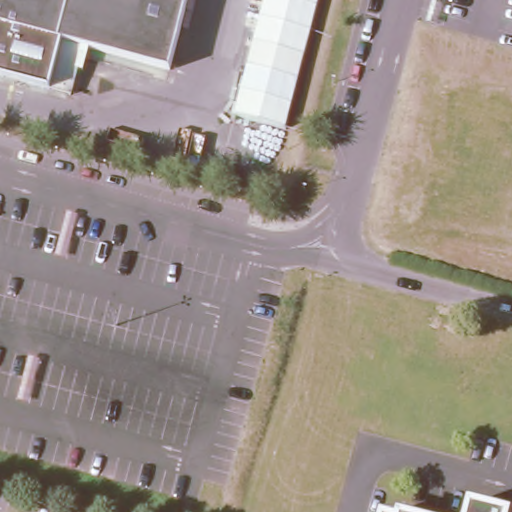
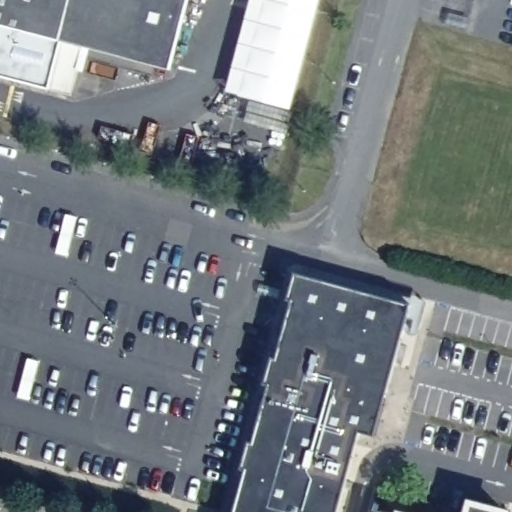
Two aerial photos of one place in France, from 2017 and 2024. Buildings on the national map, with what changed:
unchanged [(0,72),(0,0),(187,0),(169,66),(83,43),(73,80),(70,90),(49,84),(0,72)]
unchanged [(264,0),(320,0),(285,128),(235,113),(264,0)]
new [(338,512),(233,512),(244,471),(240,469),(248,441),(252,442),(267,386),(263,385),(271,357),(275,358),(290,302),(286,301),(294,272),(410,303),(374,436),(359,432),(338,512)]
unchanged [(493,512),(464,512),(467,505),(493,512)]

